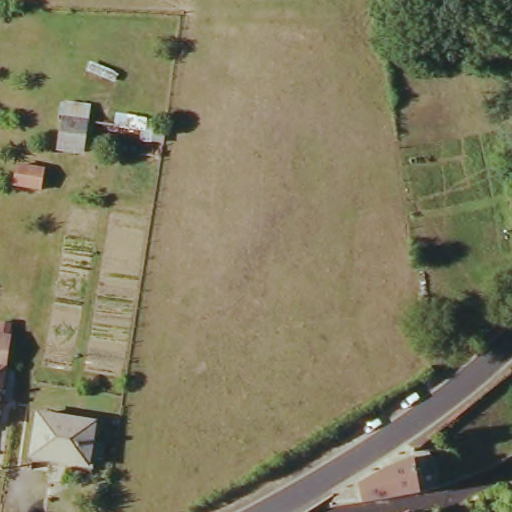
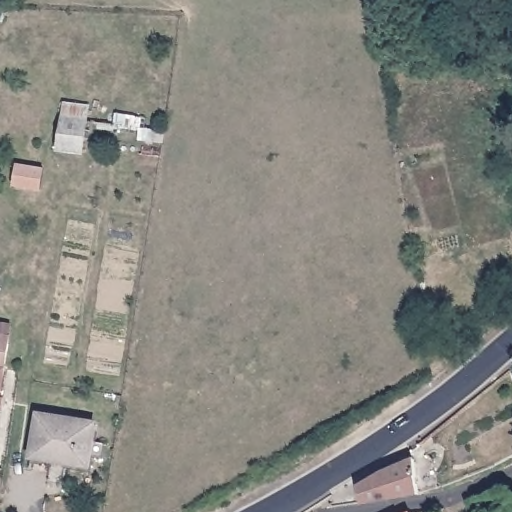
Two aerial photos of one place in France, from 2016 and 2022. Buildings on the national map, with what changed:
unchanged [(88,107),(81,151),(59,148),(65,104),(88,107)]
unchanged [(26,168),(38,170),(36,189),(24,187),(26,168)]
unchanged [(0,332),(8,333),(0,388),(0,332)]
unchanged [(91,414),(83,466),(29,456),(36,405),(91,414)]
unchanged [(408,452),(409,457),(424,451),(430,459),(437,485),(418,491),(360,501),(355,483),(408,452)]

